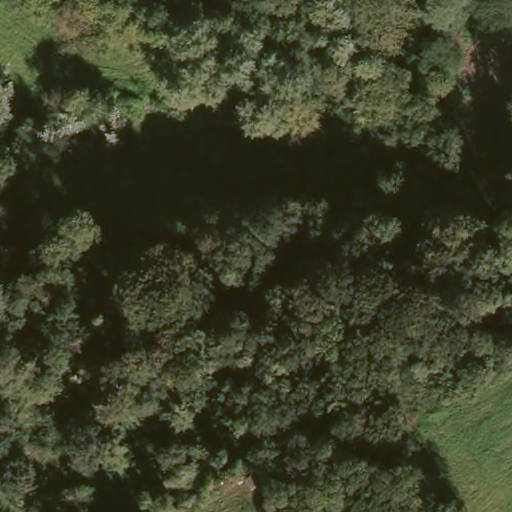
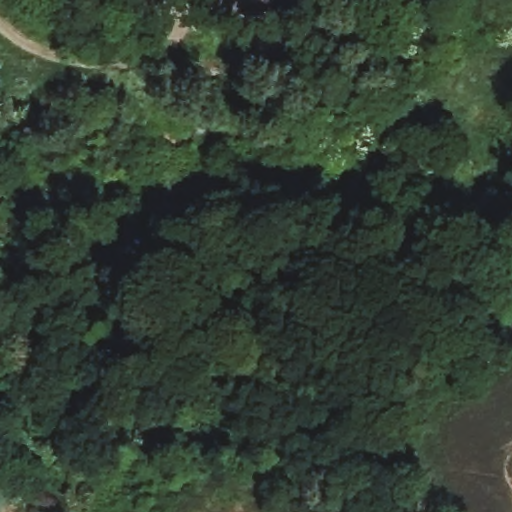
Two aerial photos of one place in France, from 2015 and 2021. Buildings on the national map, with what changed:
unchanged [(330,145),(331,165),(312,166),(313,180),(270,181),(269,147),(330,145)]
unchanged [(122,164),(123,201),(80,200),(66,188),(67,162),(122,164)]

